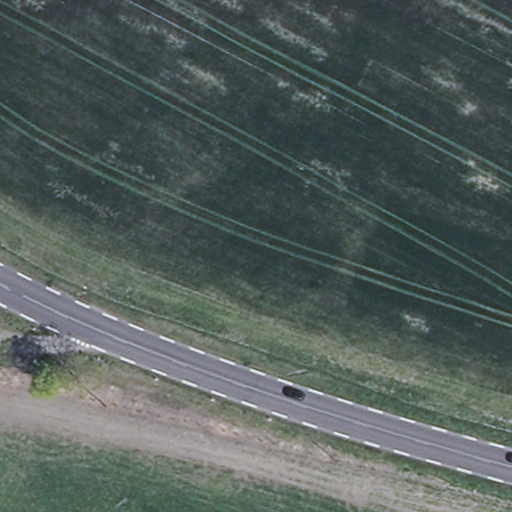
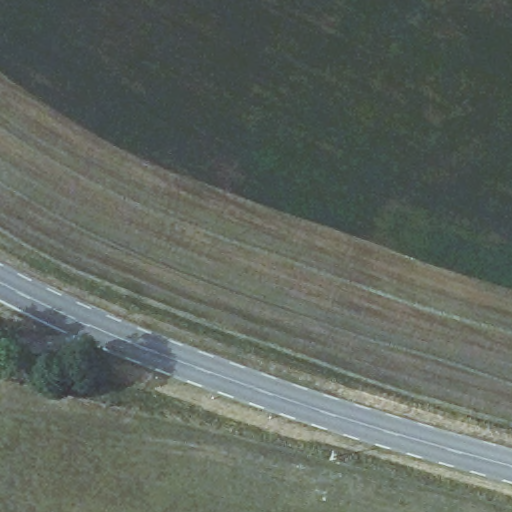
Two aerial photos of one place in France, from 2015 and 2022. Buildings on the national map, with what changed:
[]

